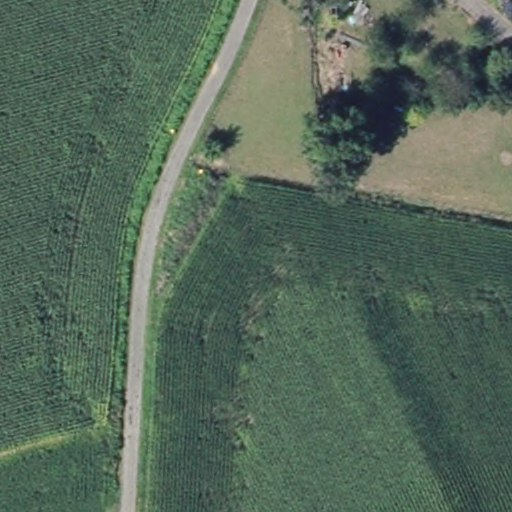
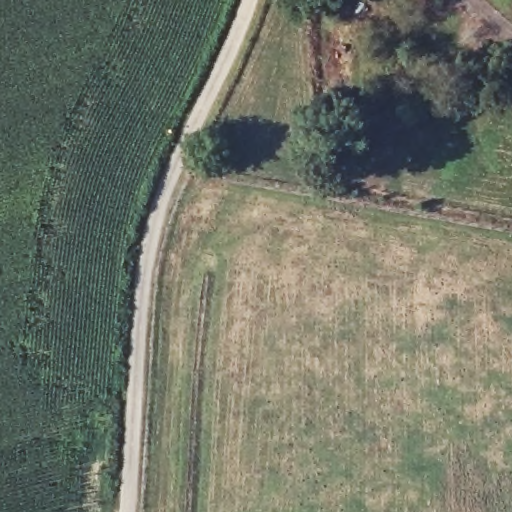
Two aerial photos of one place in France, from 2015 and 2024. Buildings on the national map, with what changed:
unchanged [(325,3),(324,0),(349,0),(349,1),(325,3)]
unchanged [(512,85),(512,88),(511,86),(512,85)]

